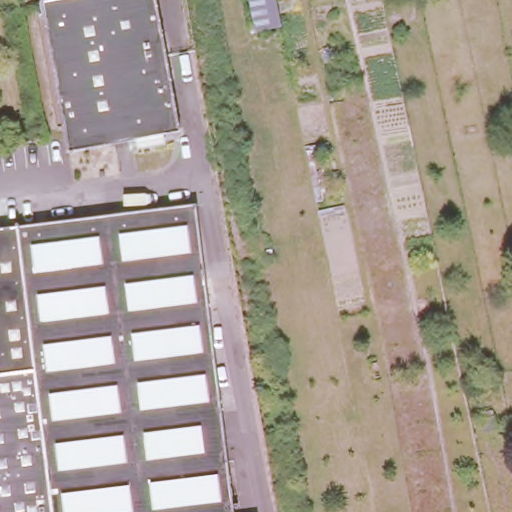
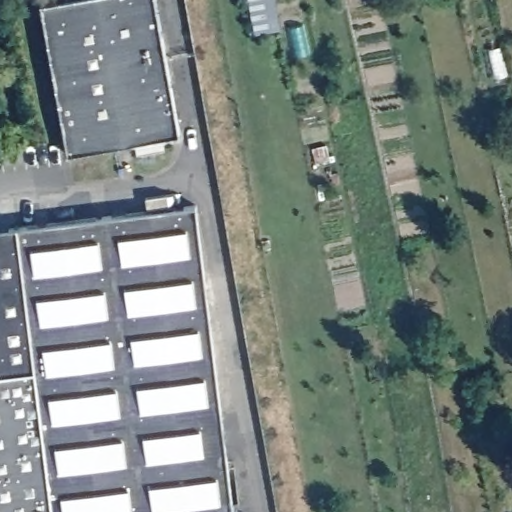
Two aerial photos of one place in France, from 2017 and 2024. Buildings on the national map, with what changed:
unchanged [(159,0),(182,130),(72,151),(45,0),(48,0),(159,0)]
unchanged [(233,512),(0,512),(0,227),(195,202),(233,512)]

